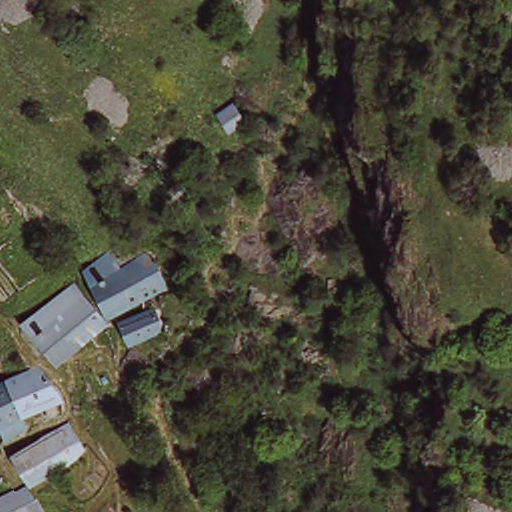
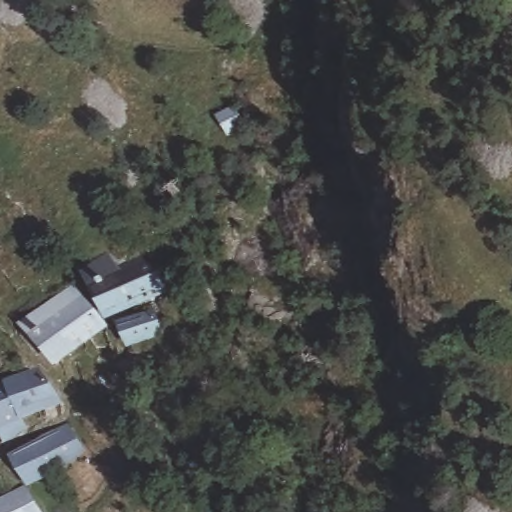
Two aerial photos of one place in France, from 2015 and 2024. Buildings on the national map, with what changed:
unchanged [(225,112),(240,106),(248,124),(233,130),(225,112)]
unchanged [(105,251),(112,265),(140,251),(159,284),(107,314),(97,297),(78,267),(105,251)]
unchanged [(53,353),(38,336),(20,316),(73,284),(105,326),(70,344),(53,353)]
unchanged [(122,322),(153,309),(162,330),(131,343),(122,322)]
unchanged [(27,430),(15,435),(11,437),(4,440),(0,442),(0,382),(10,378),(44,365),(47,367),(67,398),(66,400),(30,416),(35,426),(27,430)]
unchanged [(8,448),(35,437),(58,426),(69,421),(84,451),(55,463),(23,476),(8,448)]
unchanged [(16,480),(36,512),(0,512),(0,490),(16,480)]
unchanged [(65,511),(65,512),(64,512),(65,511)]

